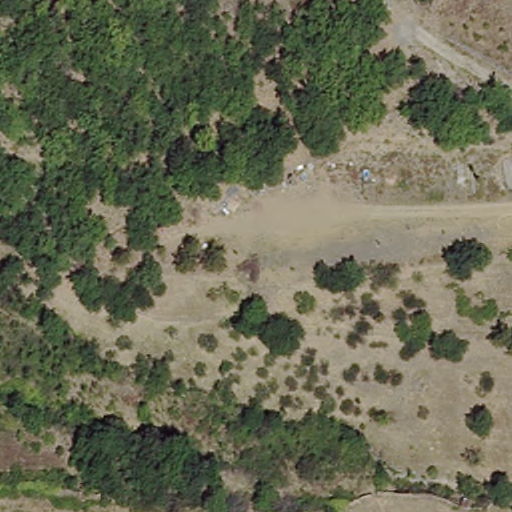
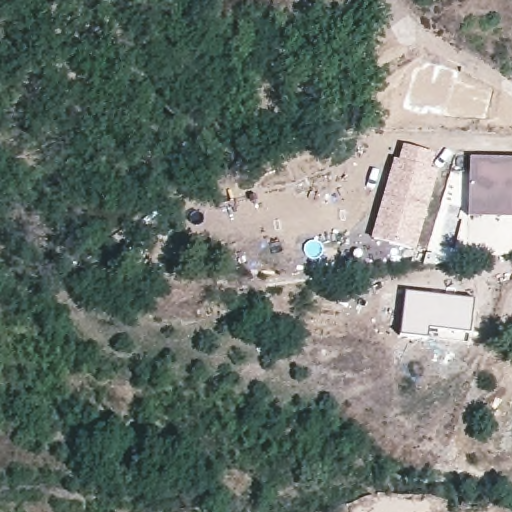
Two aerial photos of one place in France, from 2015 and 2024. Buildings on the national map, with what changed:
new [(436,153),(432,167),(439,170),(415,251),(370,238),(395,157),(400,159),(404,143),(436,153)]
new [(512,218),(469,217),(472,158),(512,158),(512,218)]
new [(475,299),(470,333),(468,344),(428,338),(400,335),(406,291),(475,299)]

